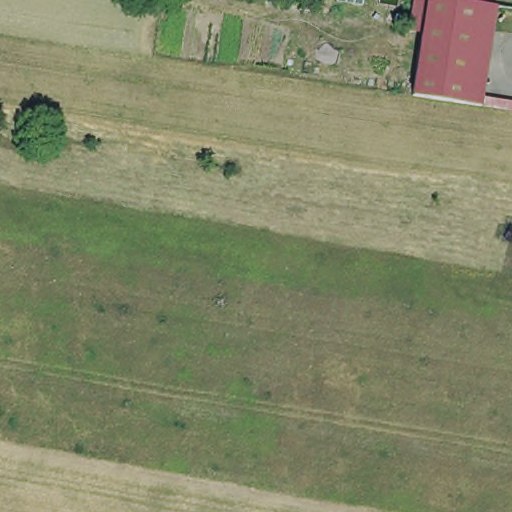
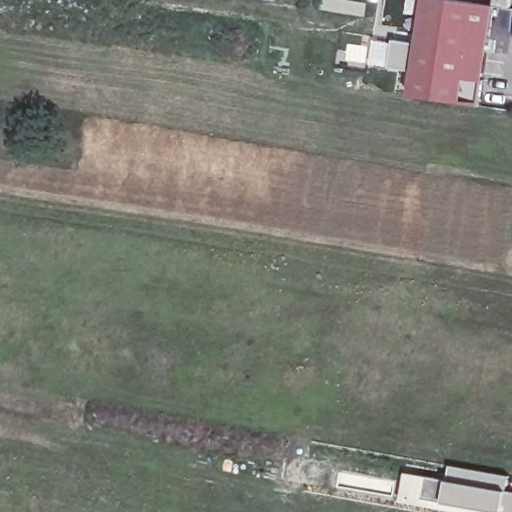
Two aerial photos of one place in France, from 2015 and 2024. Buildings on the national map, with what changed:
unchanged [(425,0),(478,0),(494,2),(486,53),(418,42),(425,0)]
unchanged [(486,53),(483,76),(415,67),(418,42),(486,53)]
unchanged [(483,76),(479,103),(411,92),(415,67),(483,76)]
new [(448,463),(510,475),(507,488),(501,512),(491,512),(442,502),(446,478),(448,463)]
new [(404,471),(446,478),(442,502),(400,495),(404,471)]
new [(512,490),(512,512),(501,512),(507,488),(512,490)]

